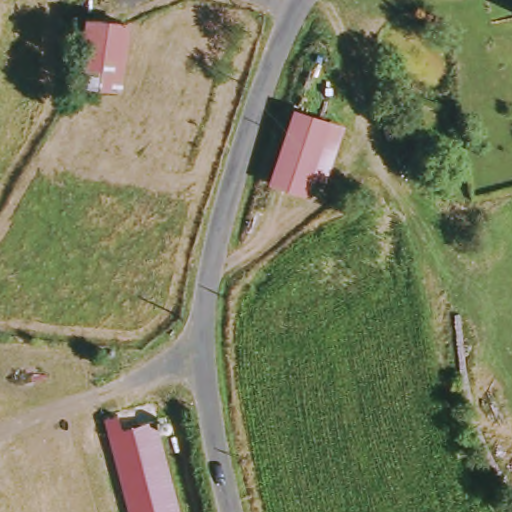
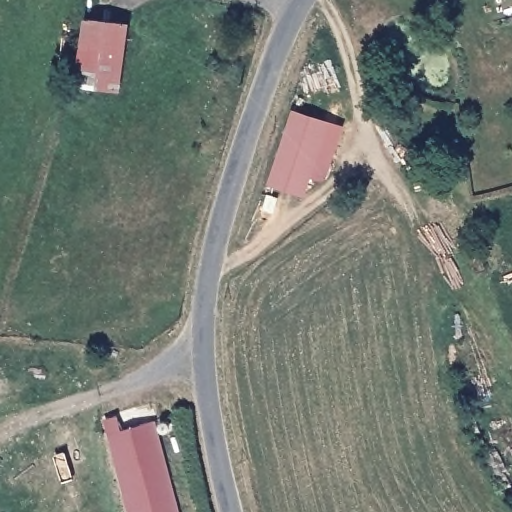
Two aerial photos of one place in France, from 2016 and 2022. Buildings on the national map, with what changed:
unchanged [(122,90),(82,85),(88,22),(131,25),(122,90)]
unchanged [(338,128),(316,200),(283,190),(305,118),(338,128)]
unchanged [(141,512),(122,432),(163,421),(184,512),(141,512)]

